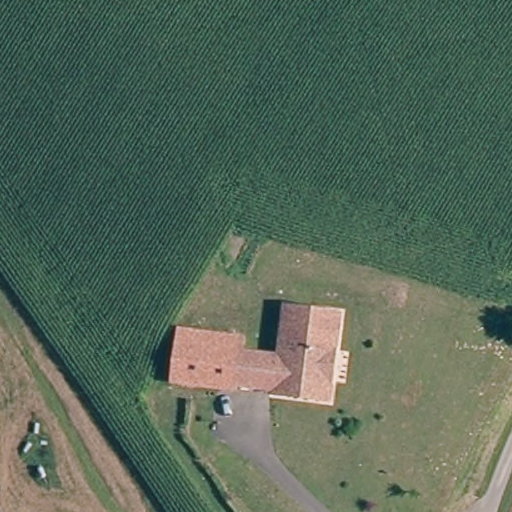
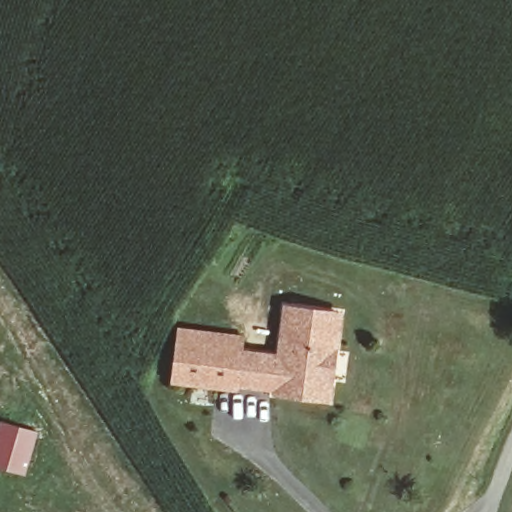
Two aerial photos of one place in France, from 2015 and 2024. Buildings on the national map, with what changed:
unchanged [(280,356),(286,306),(340,313),(329,399),(275,392),(276,387),(235,382),(239,351),(280,356)]
unchanged [(239,351),(235,382),(238,383),(237,392),(170,385),(176,327),(245,335),(242,352),(239,351)]
new [(26,477),(0,469),(0,420),(39,432),(26,477)]

